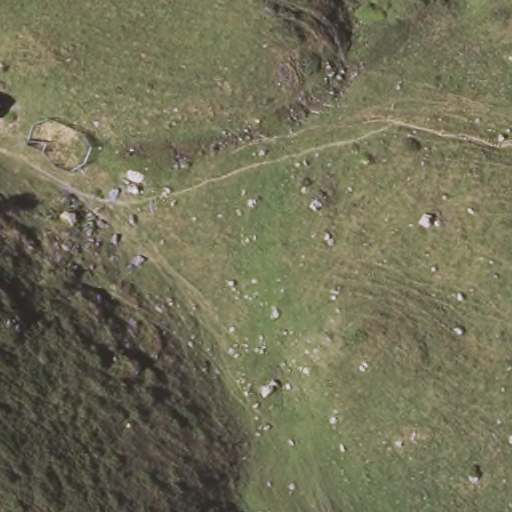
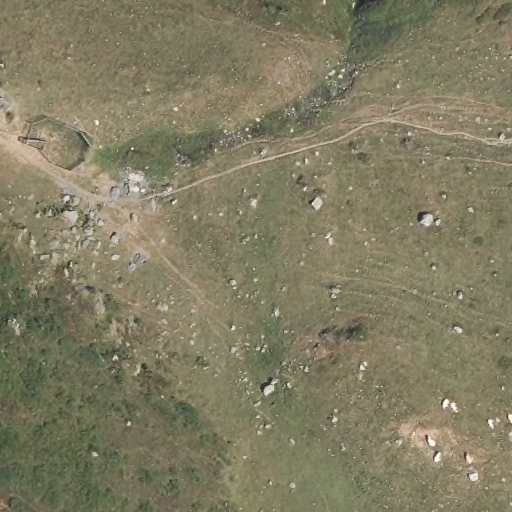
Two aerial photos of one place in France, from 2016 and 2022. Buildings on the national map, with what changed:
unchanged [(0,106),(0,104),(1,105),(0,106)]

